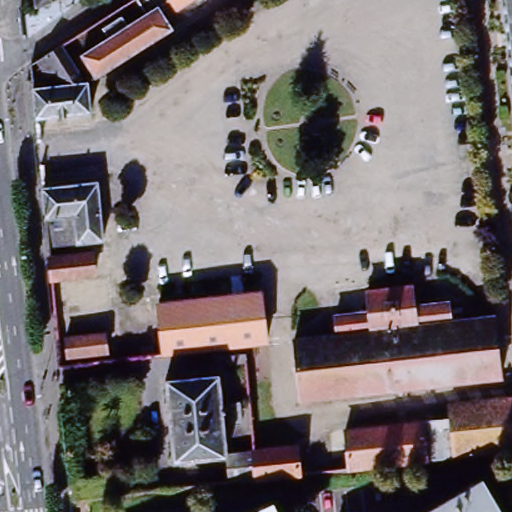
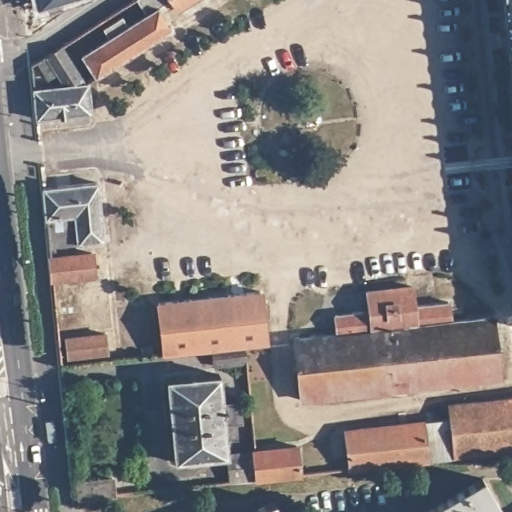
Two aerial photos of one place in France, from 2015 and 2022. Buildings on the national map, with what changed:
unchanged [(22,22),(20,0),(55,0),(22,22)]
unchanged [(159,8),(172,29),(95,78),(81,58),(114,37),(109,30),(127,18),(132,25),(149,14),(140,0),(170,0),(159,8)]
unchanged [(178,11),(171,0),(197,0),(178,11)]
unchanged [(503,0),(512,0),(512,80),(503,0)]
unchanged [(33,95),(33,87),(65,84),(48,54),(65,44),(85,81),(89,80),(91,111),(35,117),(33,95)]
unchanged [(42,188),(95,184),(100,242),(48,247),(42,188)]
unchanged [(50,259),(90,256),(91,276),(51,279),(50,259)]
unchanged [(296,397),(291,338),(334,333),(332,315),(365,311),(364,292),(410,287),(411,305),(446,301),(449,320),(493,315),(500,376),(296,397)]
unchanged [(212,367),(210,351),(160,355),(155,305),(260,295),(264,346),(241,348),(243,364),(212,367)]
unchanged [(62,338),(106,335),(108,355),(65,359),(64,359),(62,338)]
unchanged [(171,460),(165,381),(217,376),(221,408),(235,407),(237,424),(222,425),(226,455),(171,460)]
unchanged [(346,464),(342,427),(447,415),(445,401),(512,395),(512,446),(346,464)]
unchanged [(293,449),(296,474),(228,481),(226,455),(293,449)]
unchanged [(427,512),(481,480),(500,512),(427,512)]
unchanged [(253,512),(272,502),(277,512),(253,512)]

